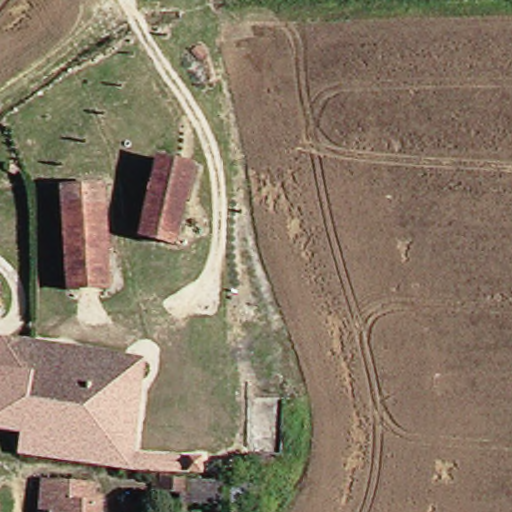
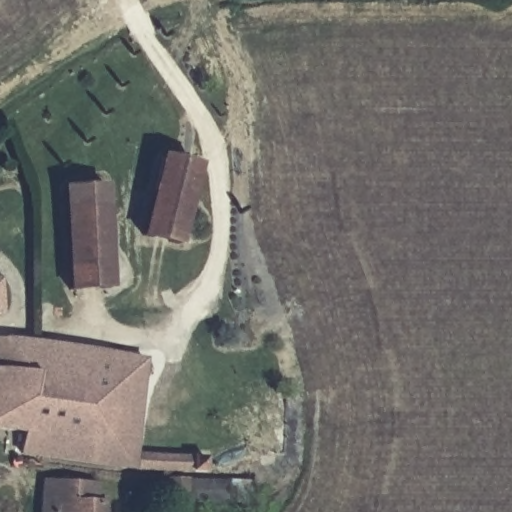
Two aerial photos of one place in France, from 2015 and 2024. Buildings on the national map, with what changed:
unchanged [(166,156),(204,165),(198,198),(194,197),(159,190),(166,156)]
unchanged [(113,288),(75,290),(72,186),(109,185),(113,288)]
unchanged [(150,235),(159,190),(194,197),(184,241),(150,235)]
unchanged [(9,318),(0,319),(0,284),(8,284),(9,318)]
unchanged [(118,465),(41,453),(28,450),(30,432),(0,428),(0,341),(144,363),(159,366),(154,418),(150,450),(148,469),(118,465)]
unchanged [(220,458),(218,477),(173,473),(148,469),(150,450),(220,458)]
unchanged [(195,496),(167,491),(169,477),(198,482),(195,496)]
unchanged [(118,512),(47,512),(50,478),(82,480),(107,485),(104,501),(119,502),(118,512)]

